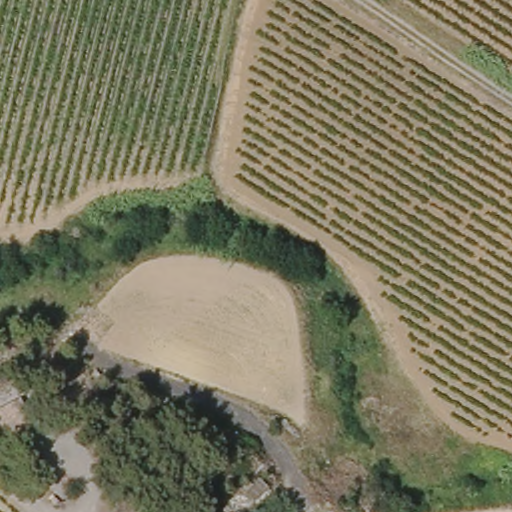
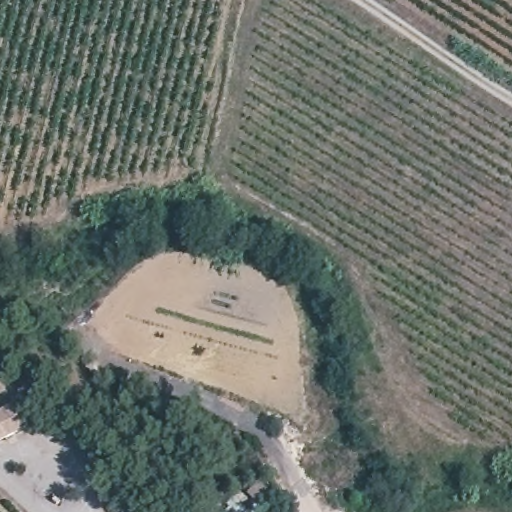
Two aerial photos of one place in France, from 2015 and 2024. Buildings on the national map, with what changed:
unchanged [(17,421),(0,427),(0,412),(11,407),(17,421)]
unchanged [(262,479),(274,486),(260,504),(249,491),(262,479)]

